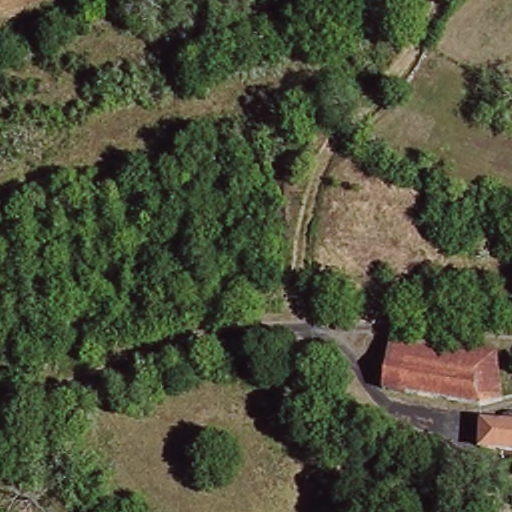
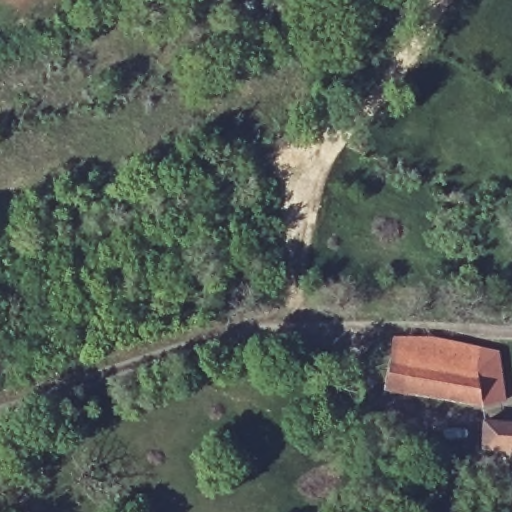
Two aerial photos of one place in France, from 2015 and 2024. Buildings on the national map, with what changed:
unchanged [(387,371),(396,340),(449,341),(502,350),(512,393),(512,402),(487,407),(420,397),(387,371)]
unchanged [(512,450),(485,448),(488,422),(506,424),(512,425),(512,451),(512,450)]

